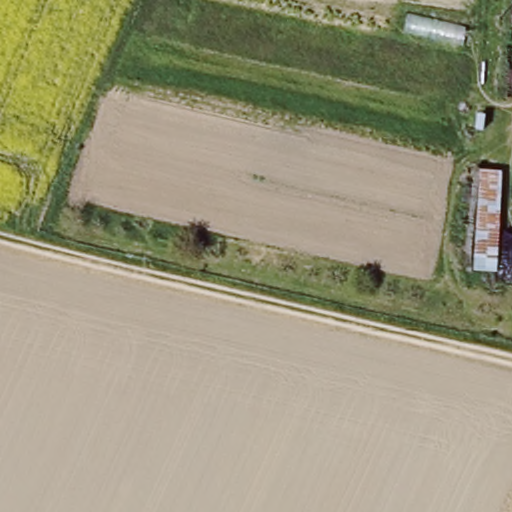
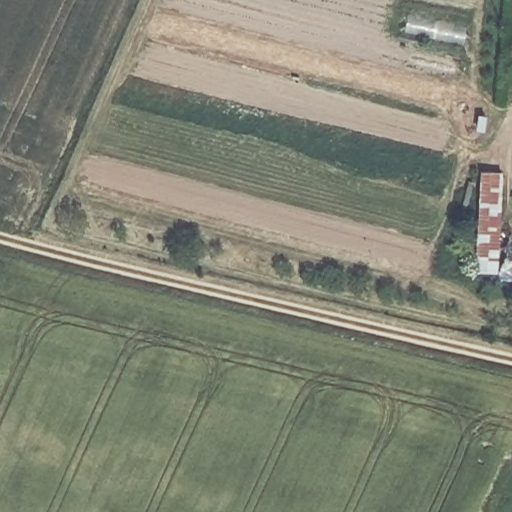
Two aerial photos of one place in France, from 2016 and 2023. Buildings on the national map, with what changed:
unchanged [(483,172),(508,175),(505,273),(478,271),(483,172)]

